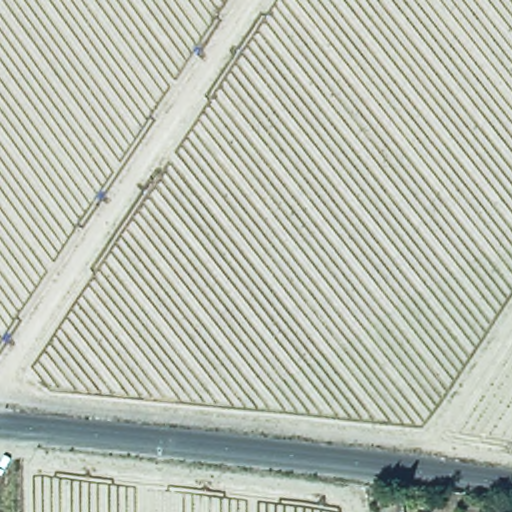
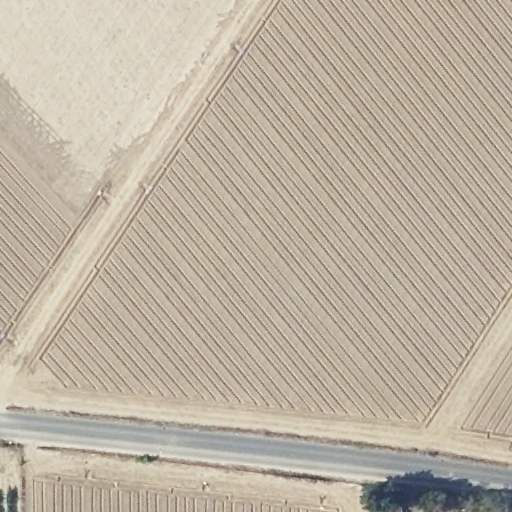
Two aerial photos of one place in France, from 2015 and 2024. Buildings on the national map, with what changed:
unchanged [(404,512),(378,512),(378,497),(402,497),(404,512)]

